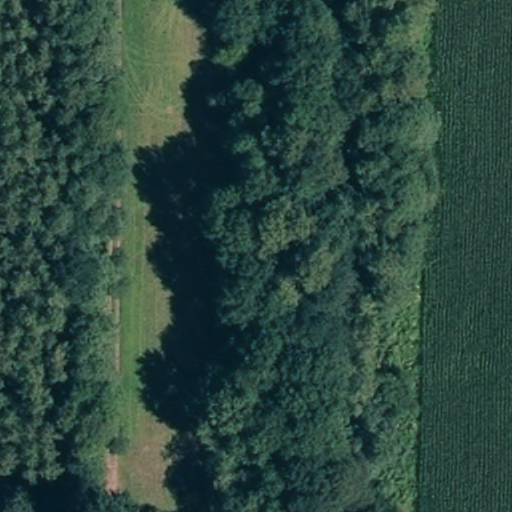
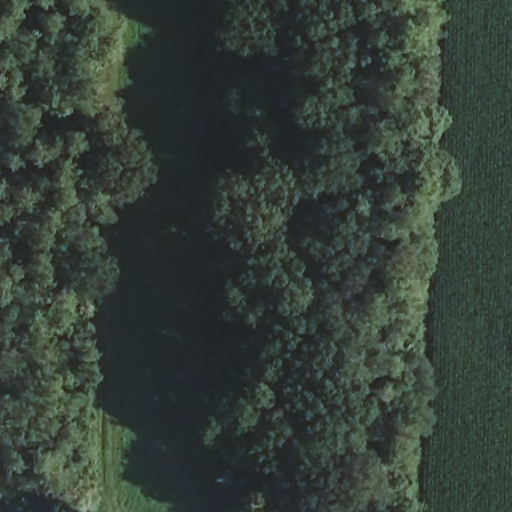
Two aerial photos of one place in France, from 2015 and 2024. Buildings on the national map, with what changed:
[]

